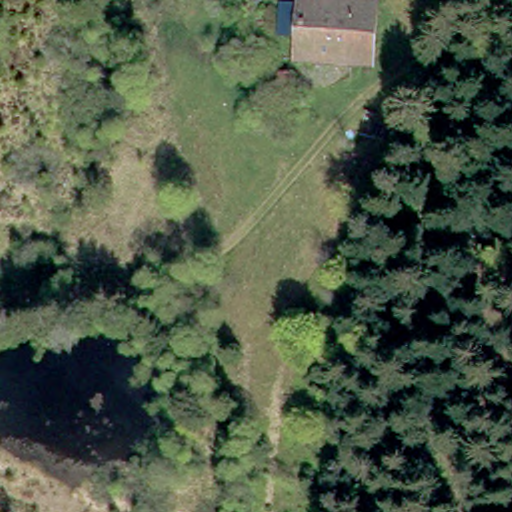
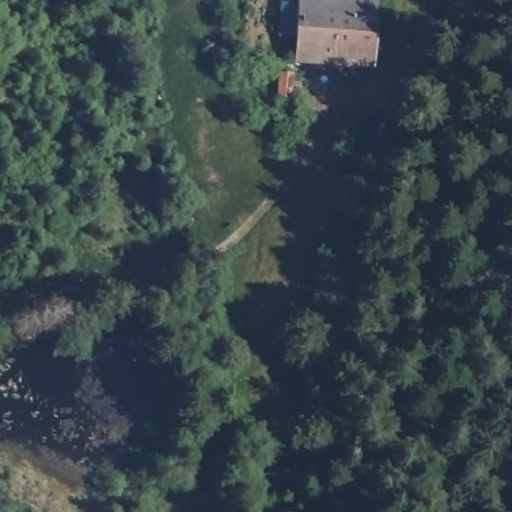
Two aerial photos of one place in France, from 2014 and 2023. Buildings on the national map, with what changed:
unchanged [(293,62),(297,4),(375,10),(377,10),(372,69),(293,62)]
unchanged [(293,100),(282,99),(283,79),(293,80),(293,100)]
unchanged [(399,183),(370,176),(387,124),(391,120),(415,128),(399,183)]

